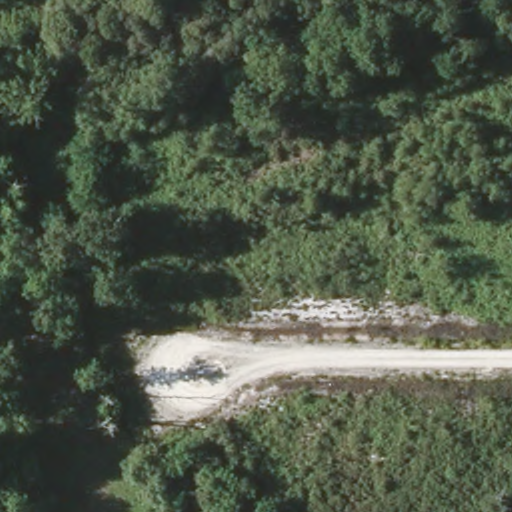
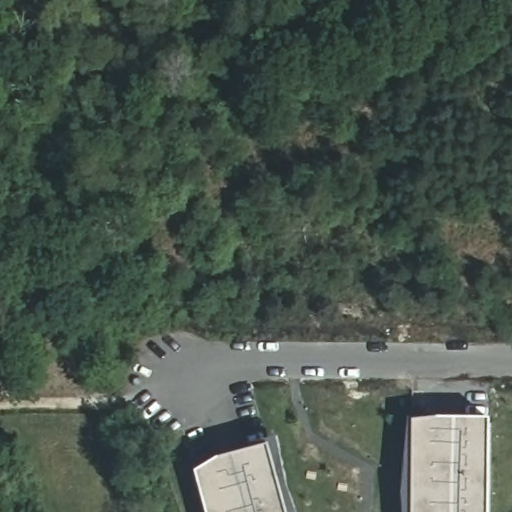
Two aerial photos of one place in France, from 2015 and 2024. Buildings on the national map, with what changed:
new [(497,425),(494,512),(416,512),(418,429),(497,425)]
new [(221,465),(271,451),(288,512),(205,512),(197,480),(221,465)]

